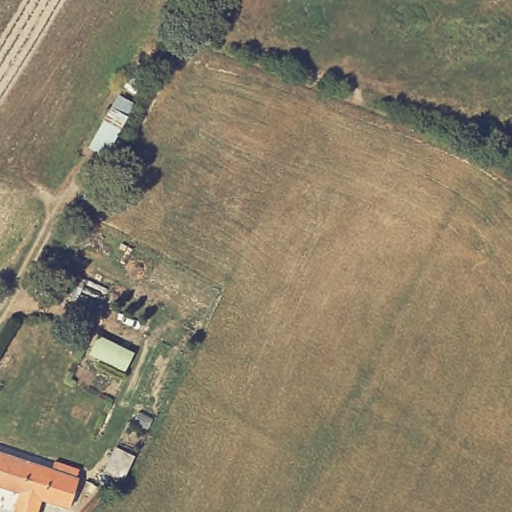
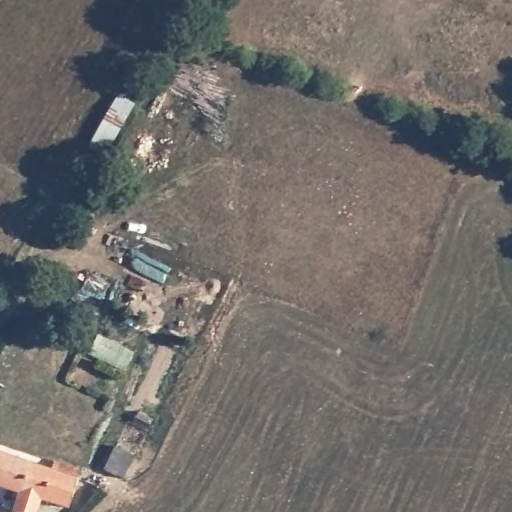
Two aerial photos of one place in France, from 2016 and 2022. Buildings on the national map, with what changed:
unchanged [(16,512),(14,511),(20,492),(0,486),(0,451),(51,468),(53,461),(77,468),(75,476),(79,477),(70,508),(42,499),(38,512),(16,512)]

